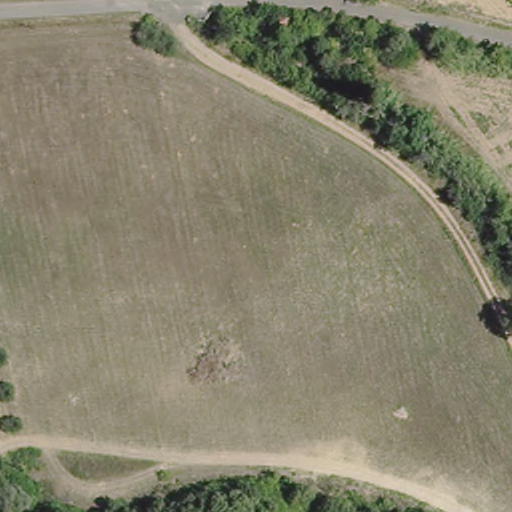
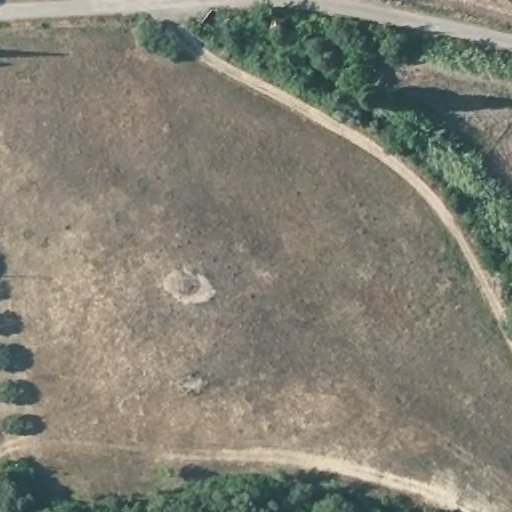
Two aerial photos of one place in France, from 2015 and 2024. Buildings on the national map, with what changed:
unchanged [(305,37),(304,45),(282,44),(283,33),(284,24),(305,25),(305,37)]

